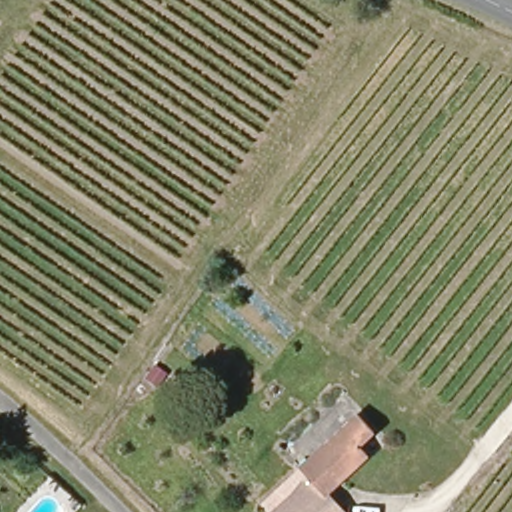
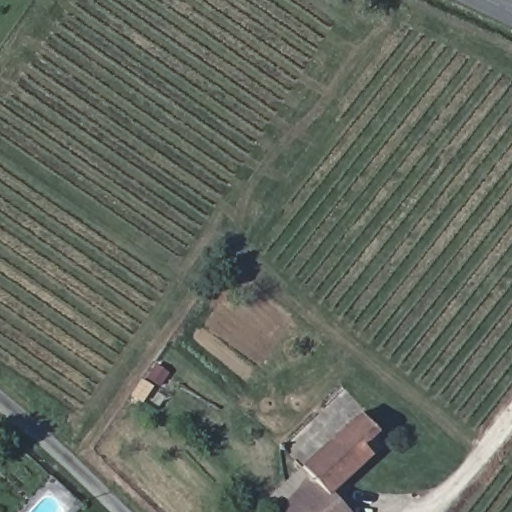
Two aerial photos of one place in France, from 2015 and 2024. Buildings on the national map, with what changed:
unchanged [(299,472),(356,416),(361,411),(378,428),(373,433),(363,442),(371,450),(329,491),(349,512),(275,512),(267,504),(299,472)]

